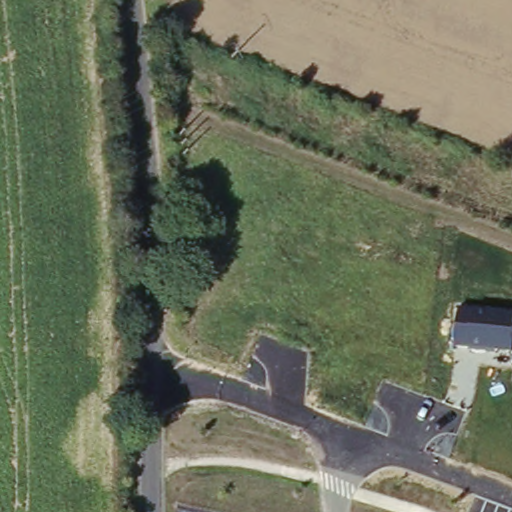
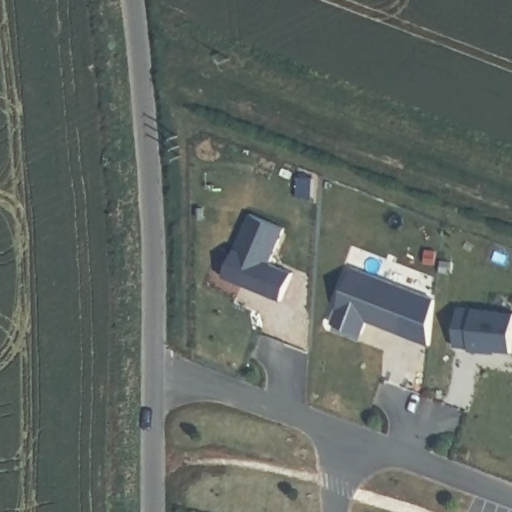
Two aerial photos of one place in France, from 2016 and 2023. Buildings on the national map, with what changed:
new [(285,228),(271,264),(292,273),(281,301),(224,277),(249,214),(285,228)]
new [(435,301),(431,346),(367,323),(362,337),(330,324),(352,268),(435,301)]
unchanged [(458,307),(512,312),(512,352),(455,346),(458,307)]

